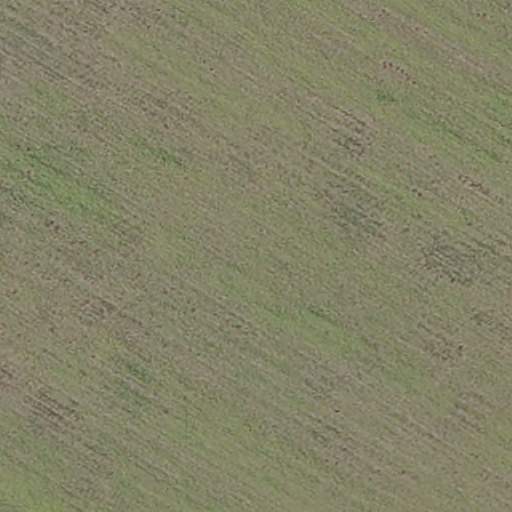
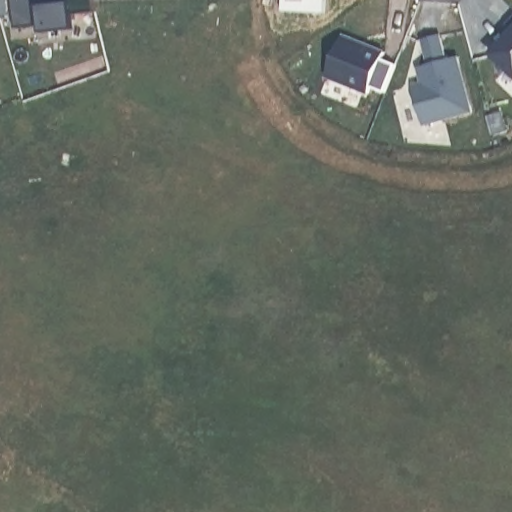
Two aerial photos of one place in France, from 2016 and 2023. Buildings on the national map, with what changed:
new [(74,12),(76,30),(48,35),(47,20),(35,22),(14,24),(12,0),(92,0),(94,8),(74,12)]
new [(285,12),(285,0),(327,0),(327,15),(285,12)]
new [(512,21),(512,29),(508,25),(512,21)]
new [(383,86),(369,81),(367,87),(325,71),(341,30),(383,47),(380,53),(394,59),(383,86)]
new [(412,84),(422,81),(418,65),(429,62),(422,37),(439,32),(445,58),(457,55),(471,110),(423,122),(412,84)]
new [(512,35),(512,71),(494,54),(512,35)]

